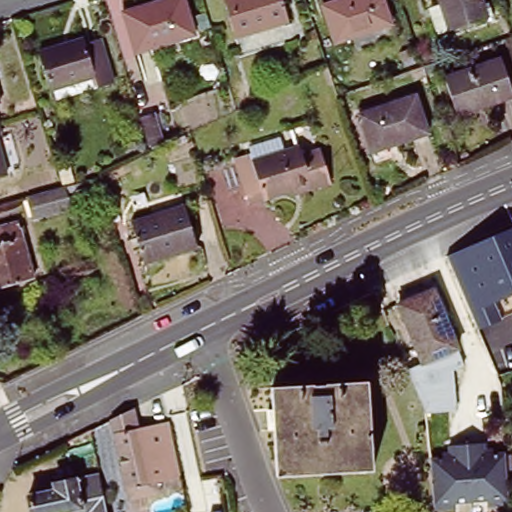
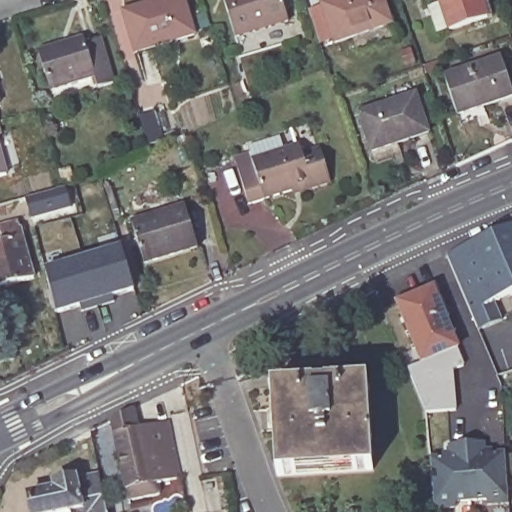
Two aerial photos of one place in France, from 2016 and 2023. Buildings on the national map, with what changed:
unchanged [(190,0),(198,26),(140,46),(126,5),(141,0),(190,0)]
unchanged [(234,35),(223,0),(281,0),(287,20),(234,35)]
unchanged [(386,0),(393,22),(338,42),(325,4),(335,0),(386,0)]
unchanged [(453,33),(442,0),(484,0),(491,20),(453,33)]
unchanged [(88,40),(90,44),(106,40),(119,82),(101,88),(98,77),(53,91),(42,55),(88,40)]
unchanged [(504,56),(512,81),(512,94),(459,112),(447,75),(504,56)]
unchanged [(0,102),(0,88),(3,101),(0,102)]
unchanged [(417,92),(429,131),(374,150),(361,111),(417,92)]
unchanged [(0,120),(0,114),(1,120),(0,120)]
unchanged [(0,120),(1,120),(5,133),(0,135),(0,120)]
unchanged [(0,179),(0,135),(11,176),(0,179)]
unchanged [(251,152),(248,146),(280,135),(284,149),(300,143),(304,152),(323,146),(334,181),(314,187),(311,181),(249,202),(234,158),(251,152)]
unchanged [(63,187),(65,186),(69,205),(33,215),(28,196),(63,187)]
unchanged [(186,202),(197,242),(144,258),(133,219),(186,202)]
unchanged [(38,278),(0,290),(0,230),(23,224),(38,278)]
unchanged [(448,257),(512,228),(512,293),(494,301),(502,319),(479,329),(448,257)]
new [(121,249),(135,290),(113,296),(115,301),(98,306),(84,260),(121,249)]
new [(84,260),(98,306),(81,311),(80,306),(56,313),(46,271),(84,260)]
unchanged [(456,395),(456,405),(450,407),(429,408),(429,407),(413,367),(427,361),(401,300),(437,285),(463,346),(461,348),(468,363),(458,367),(460,393),(456,395)]
unchanged [(378,466),(282,475),(274,387),(369,378),(378,466)]
unchanged [(184,479),(125,490),(113,418),(133,408),(136,427),(173,421),(184,479)]
unchanged [(453,456),(452,443),(469,442),(473,499),(458,500),(458,505),(436,506),(434,483),(432,457),(453,456)]
unchanged [(486,442),(487,454),(508,452),(511,502),(489,503),(488,498),(473,499),(469,442),(486,442)]
unchanged [(65,477),(104,472),(110,512),(85,512),(84,509),(73,512),(36,512),(30,491),(65,477)]

